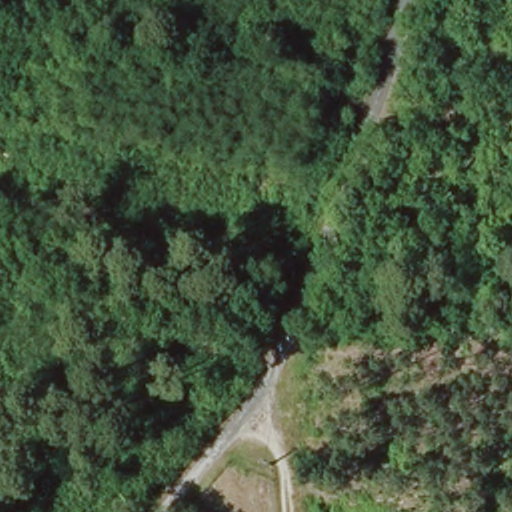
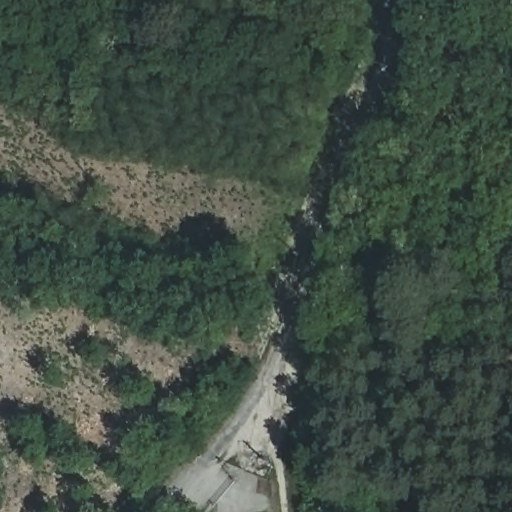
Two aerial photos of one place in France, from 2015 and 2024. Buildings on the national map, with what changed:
[]

